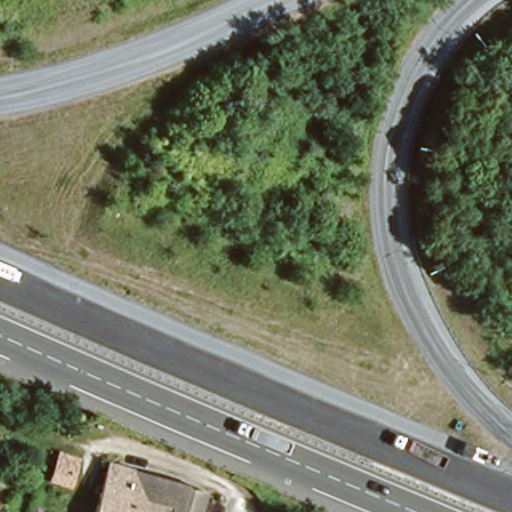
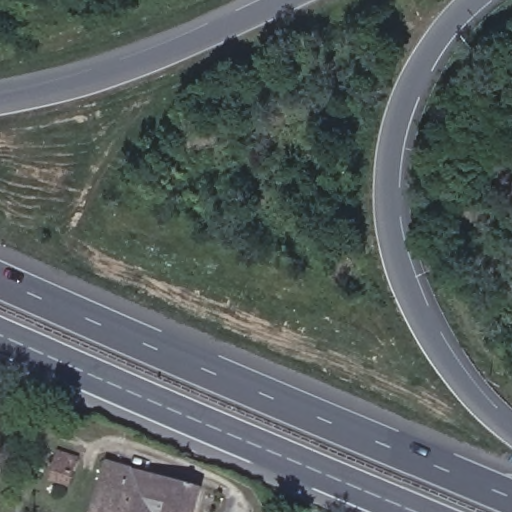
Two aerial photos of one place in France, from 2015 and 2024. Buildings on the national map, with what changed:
unchanged [(103,460),(195,486),(188,512),(88,512),(103,460)]

